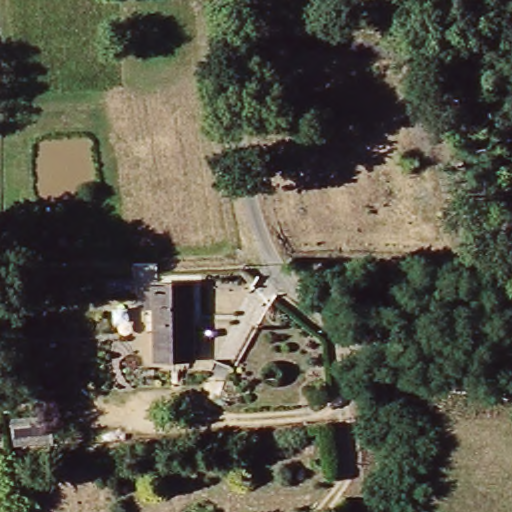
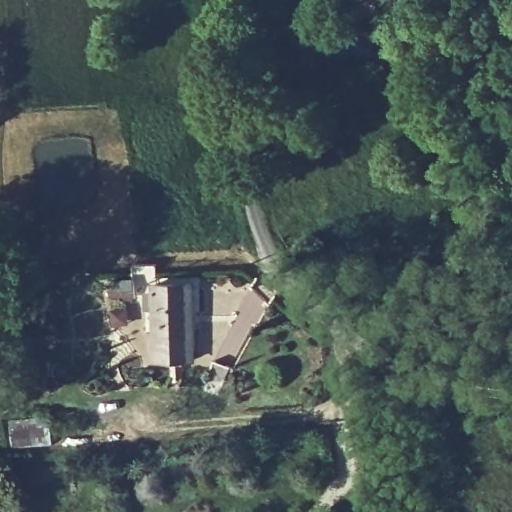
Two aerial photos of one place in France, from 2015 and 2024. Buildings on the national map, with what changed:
unchanged [(152,363),(148,316),(146,287),(183,285),(191,361),(158,363),(152,363)]
unchanged [(203,390),(212,362),(228,367),(221,392),(212,393),(203,390)]

